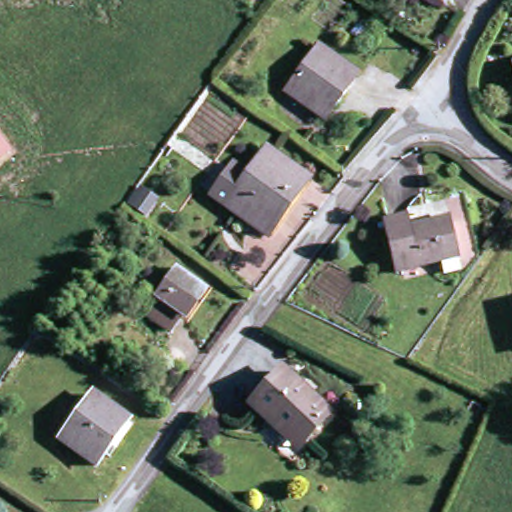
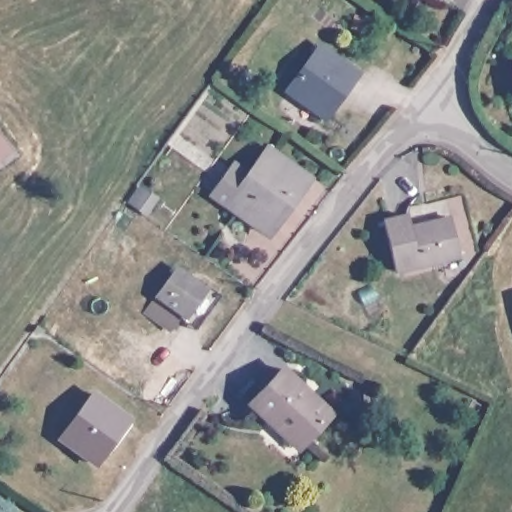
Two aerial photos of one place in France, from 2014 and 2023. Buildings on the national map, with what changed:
unchanged [(325,119),(286,90),(316,49),(354,79),(325,119)]
unchanged [(13,150),(0,161),(0,133),(13,150)]
unchanged [(303,186),(264,239),(230,214),(213,200),(231,174),(249,186),(267,160),(303,186)]
unchanged [(161,195),(151,210),(139,201),(149,187),(161,195)]
unchanged [(384,221),(411,214),(413,222),(448,214),(458,254),(396,268),(384,221)]
unchanged [(171,269),(199,288),(182,313),(176,310),(164,324),(143,308),(171,269)]
unchanged [(274,429),(249,407),(281,371),(326,410),(303,437),(295,446),(274,429)]
unchanged [(90,463),(58,440),(91,394),(124,417),(90,463)]

